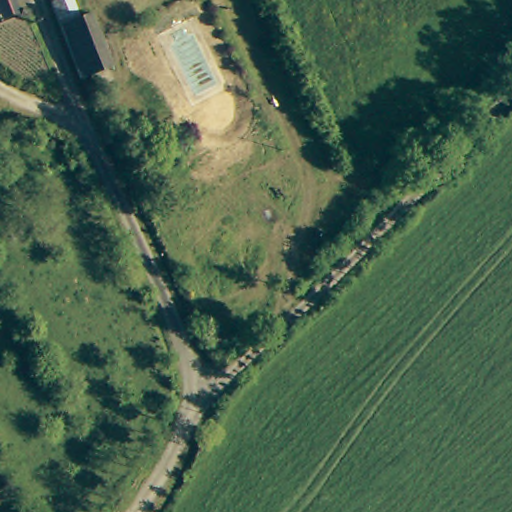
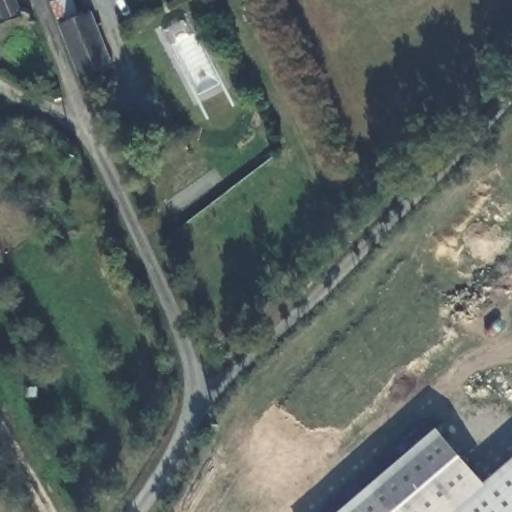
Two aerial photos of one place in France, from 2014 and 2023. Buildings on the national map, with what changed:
unchanged [(25,12),(10,21),(0,27),(0,0),(19,0),(25,12)]
unchanged [(82,17),(94,14),(101,28),(112,67),(79,79),(51,4),(62,0),(74,0),(82,17)]
new [(485,479),(512,455),(512,512),(342,512),(440,429),(485,479)]

